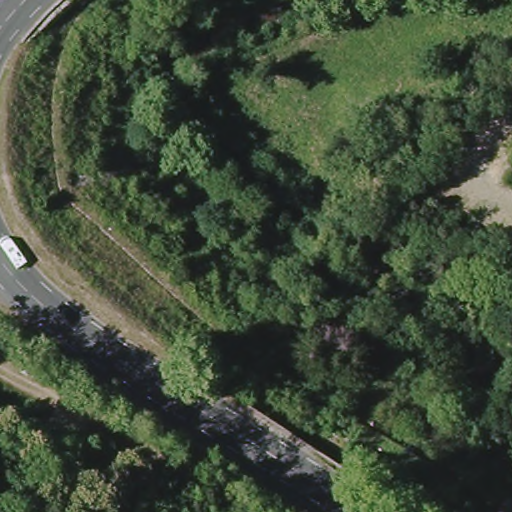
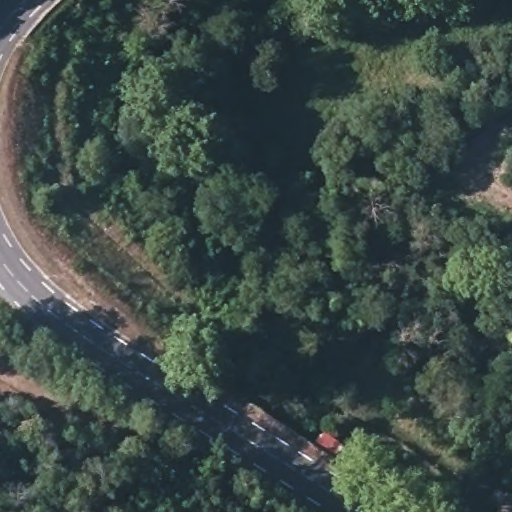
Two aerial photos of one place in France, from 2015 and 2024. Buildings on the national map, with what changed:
unchanged [(512,505),(512,512),(504,512),(509,504),(512,505)]

